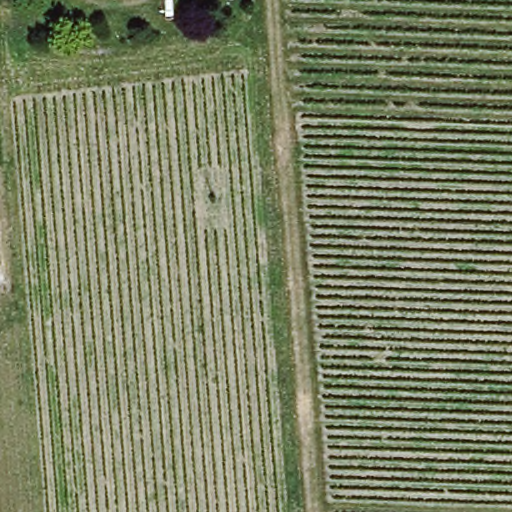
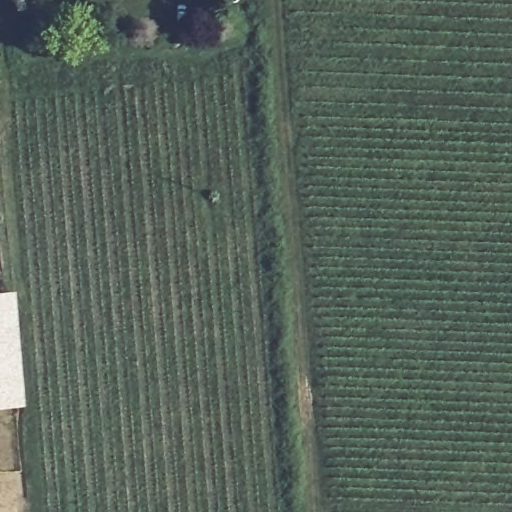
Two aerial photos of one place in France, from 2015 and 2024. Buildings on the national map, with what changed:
unchanged [(2,260),(0,261),(0,250),(2,260)]
new [(13,292),(24,408),(0,411),(0,294),(13,292)]

